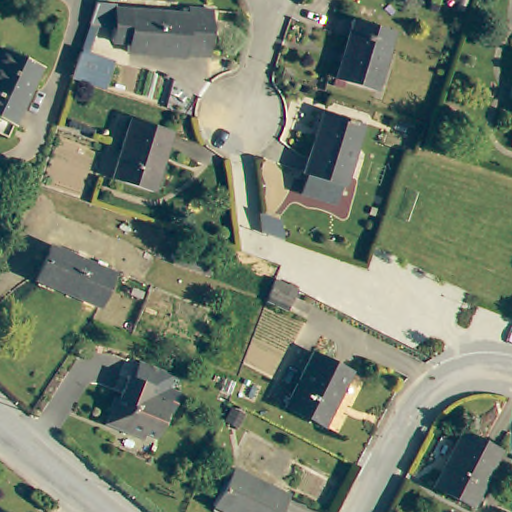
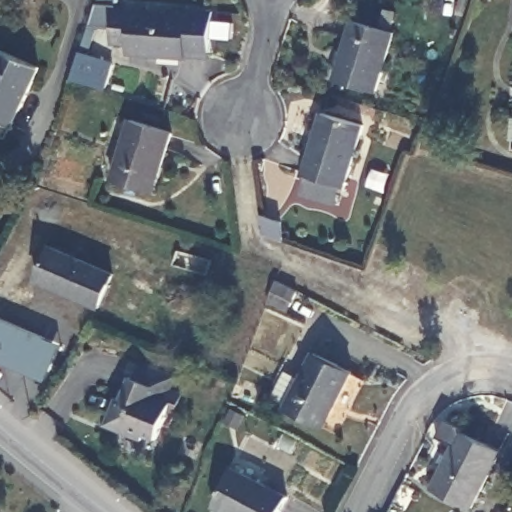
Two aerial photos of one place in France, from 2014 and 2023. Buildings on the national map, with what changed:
unchanged [(125,15),(125,19),(182,22),(183,15),(207,18),(205,57),(183,58),(182,65),(124,62),(124,52),(103,50),(104,35),(82,34),(89,14),(125,15)]
unchanged [(397,35),(377,93),(336,80),(355,22),(397,35)]
unchanged [(44,64),(9,135),(0,130),(0,57),(5,47),(44,64)]
unchanged [(122,64),(115,95),(79,85),(88,55),(122,64)]
unchanged [(303,191),(309,175),(306,175),(326,115),(364,127),(344,187),(341,186),(335,201),(303,191)]
unchanged [(174,134),(155,194),(111,180),(130,120),(174,134)]
unchanged [(114,275),(98,307),(39,280),(54,247),(114,275)]
unchanged [(306,292),(299,310),(276,300),(284,281),(306,292)]
new [(48,381),(0,361),(0,317),(64,344),(48,381)]
unchanged [(350,377),(327,425),(289,405),(311,358),(350,377)]
unchanged [(157,391),(155,400),(169,406),(155,442),(143,437),(140,445),(119,436),(122,428),(106,422),(115,400),(119,402),(128,380),(157,391)]
unchanged [(509,453),(481,510),(440,491),(469,434),(509,453)]
unchanged [(285,495),(278,512),(226,512),(212,505),(230,467),(285,495)]

